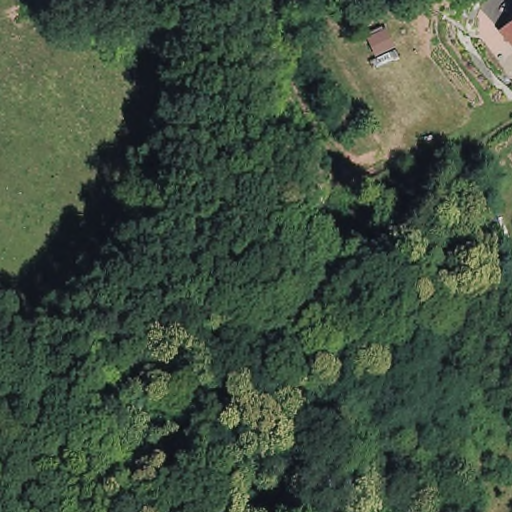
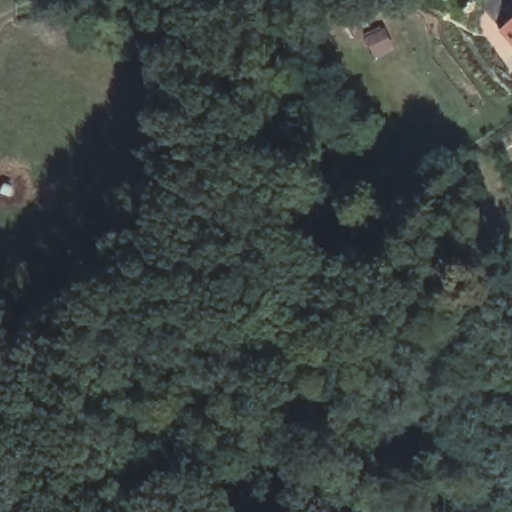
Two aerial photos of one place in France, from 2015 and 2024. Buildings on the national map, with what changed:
unchanged [(512,34),(512,40),(509,37),(512,34)]

